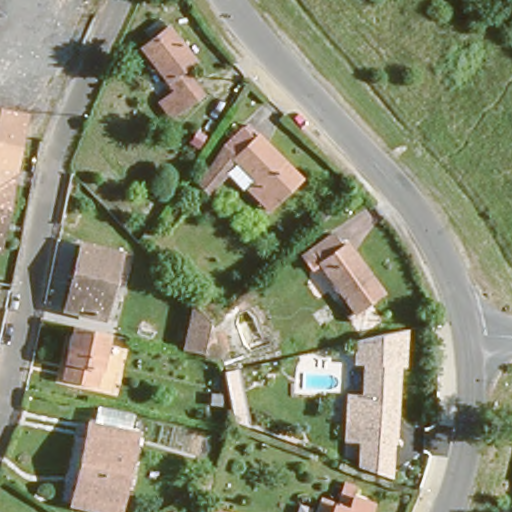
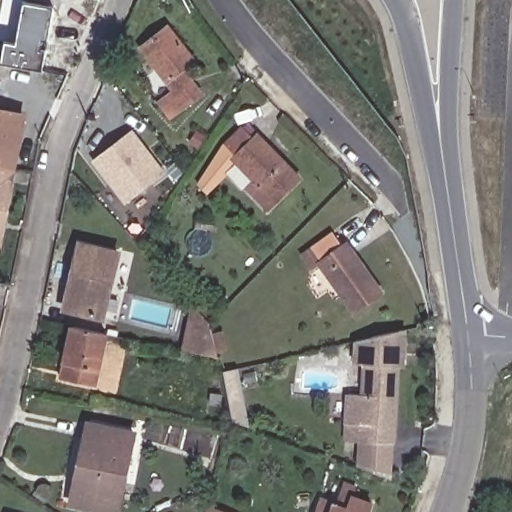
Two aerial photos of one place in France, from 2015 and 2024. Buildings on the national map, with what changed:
new [(47,39),(42,39),(41,49),(45,49),(41,70),(1,62),(5,42),(16,44),(23,2),(52,7),(47,39)]
unchanged [(177,65),(185,76),(180,80),(191,94),(166,113),(154,97),(169,85),(137,44),(163,23),(189,56),(177,65)]
unchanged [(0,222),(0,112),(22,116),(2,222),(0,222)]
unchanged [(206,188),(199,181),(226,140),(242,124),(252,134),(257,130),(300,174),(277,196),(253,172),(246,180),(242,183),(227,168),(206,188)]
new [(126,205),(92,161),(134,129),(166,174),(126,205)]
unchanged [(312,263),(303,251),(333,229),(342,242),(346,238),(381,288),(355,307),(320,257),(312,263)]
unchanged [(103,318),(64,308),(79,243),(119,253),(103,318)]
unchanged [(179,355),(189,309),(189,310),(200,300),(210,312),(200,321),(205,327),(212,363),(179,355)]
unchanged [(94,386),(61,379),(72,326),(106,333),(94,386)]
unchanged [(360,365),(361,343),(408,330),(406,367),(402,367),(398,442),(366,440),(351,439),(352,423),(353,393),(368,394),(370,365),(360,365)]
unchanged [(242,405),(233,406),(231,391),(240,389),(242,405)]
unchanged [(221,406),(210,404),(211,394),(222,395),(221,406)]
unchanged [(108,512),(81,506),(87,478),(77,476),(88,423),(134,433),(117,512),(108,512)]
unchanged [(366,440),(398,442),(397,478),(372,469),(365,467),(366,440)]
unchanged [(206,490),(191,497),(201,472),(212,476),(206,490)]
unchanged [(342,505),(350,485),(359,488),(357,494),(376,501),(372,512),(320,512),(325,499),(342,505)]
unchanged [(225,512),(214,512),(215,508),(225,512)]

